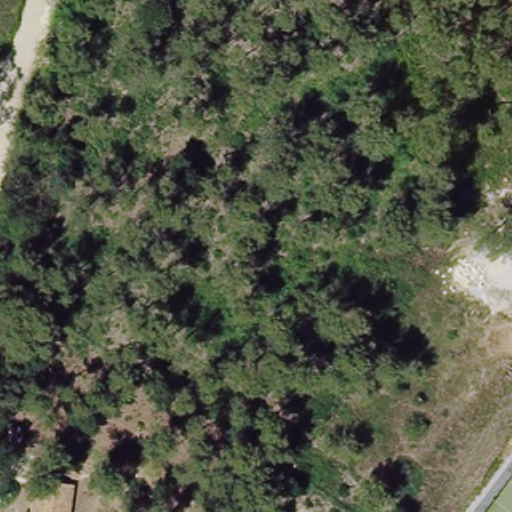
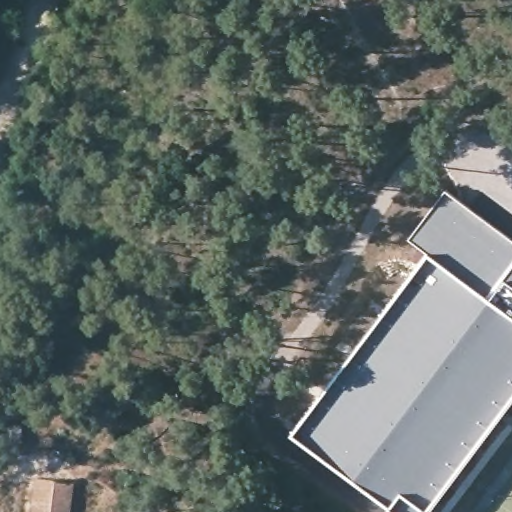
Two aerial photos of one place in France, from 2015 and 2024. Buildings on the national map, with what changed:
new [(512,400),(429,512),(397,512),(293,434),(430,250),(411,240),(447,192),(512,240),(512,400)]
unchanged [(75,489),(72,512),(27,512),(30,484),(75,489)]

